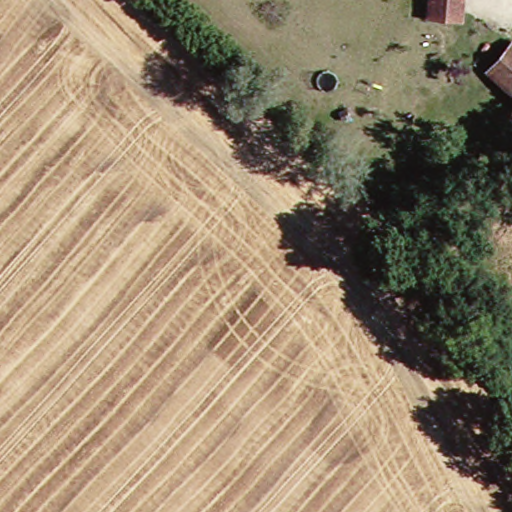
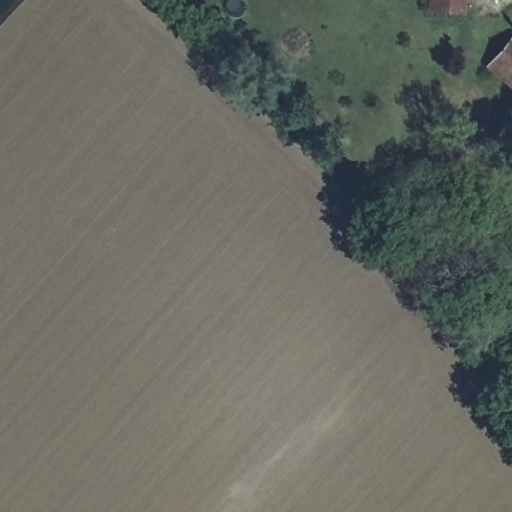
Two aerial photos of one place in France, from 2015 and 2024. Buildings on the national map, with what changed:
unchanged [(437,9),(438,0),(468,0),(467,10),(437,9)]
unchanged [(512,84),(492,66),(512,42),(512,84)]

